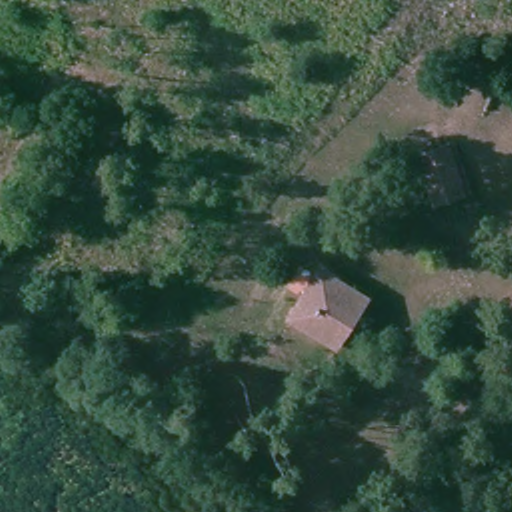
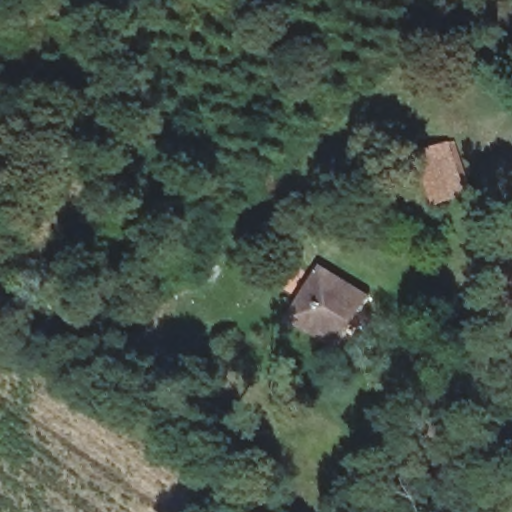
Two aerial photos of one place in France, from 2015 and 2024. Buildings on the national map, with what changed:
unchanged [(457,139),(470,198),(426,210),(412,150),(457,139)]
unchanged [(290,318),(320,270),(371,300),(340,351),(290,318)]

